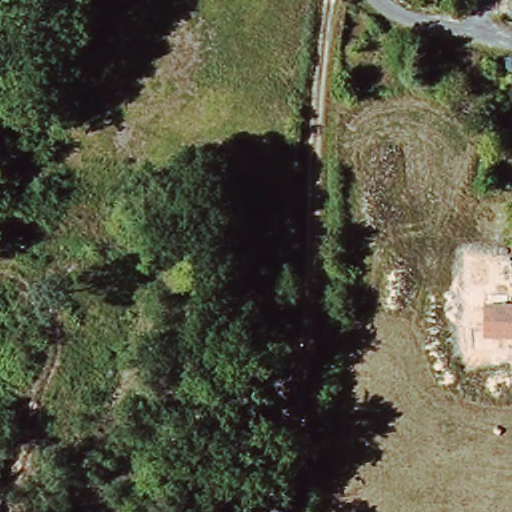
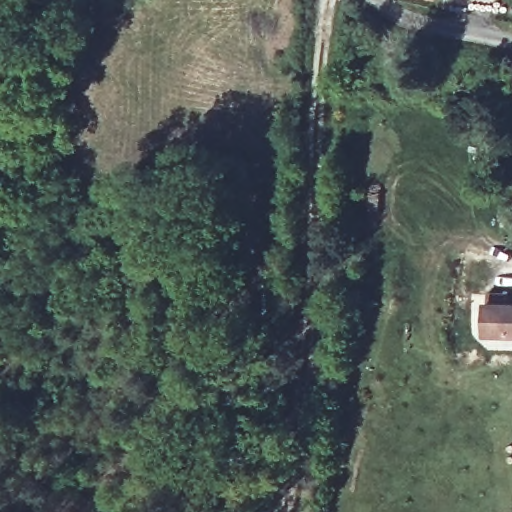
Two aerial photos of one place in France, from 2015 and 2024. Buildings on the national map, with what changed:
unchanged [(512,303),(512,337),(484,337),(484,303),(512,303)]

